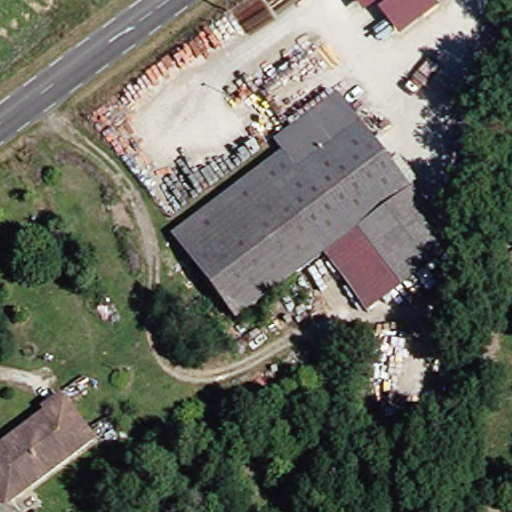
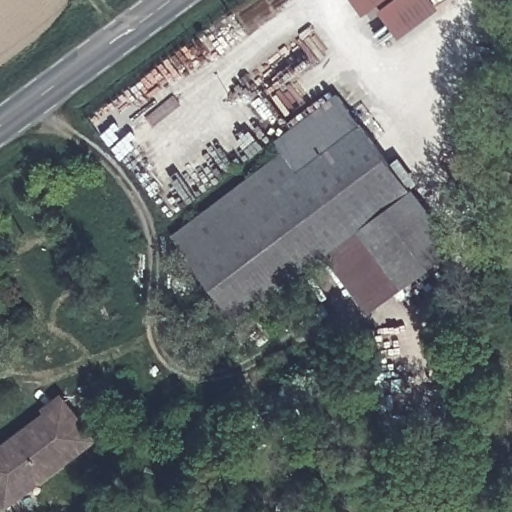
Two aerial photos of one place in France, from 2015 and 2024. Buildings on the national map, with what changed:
unchanged [(380,13),(364,23),(349,0),(433,0),(443,16),(402,43),(380,13)]
unchanged [(170,236),(278,154),(271,145),(333,98),(403,190),(352,228),(317,255),(232,319),(170,236)]
unchanged [(403,190),(450,248),(398,286),(352,228),(403,190)]
unchanged [(363,312),(317,255),(352,228),(398,286),(363,312)]
unchanged [(35,412),(55,397),(85,438),(0,502),(0,438),(35,412)]

